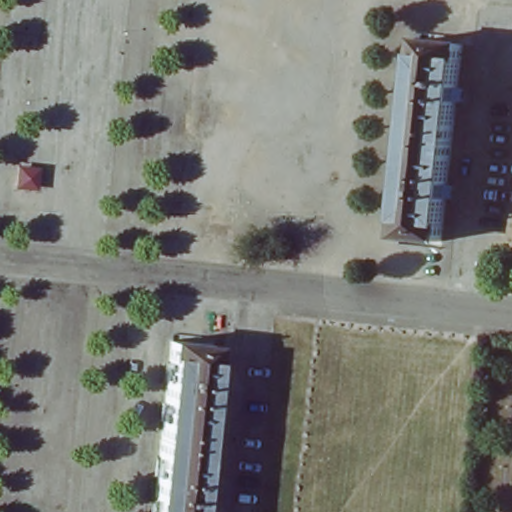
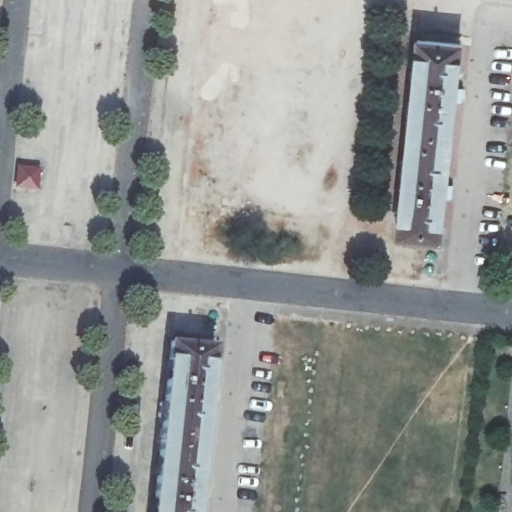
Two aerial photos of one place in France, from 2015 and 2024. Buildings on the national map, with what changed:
unchanged [(444,246),(400,242),(421,44),(464,49),(444,246)]
unchanged [(213,346),(195,512),(152,512),(169,341),(213,346)]

